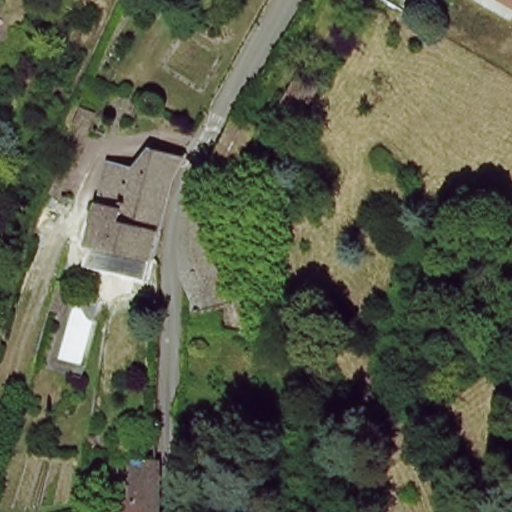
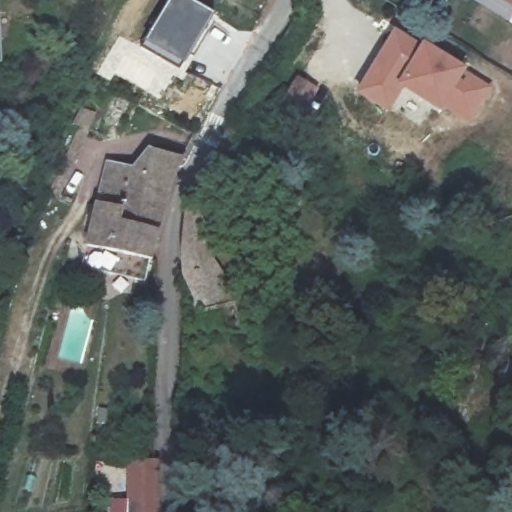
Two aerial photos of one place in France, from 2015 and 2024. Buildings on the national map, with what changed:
new [(168,0),(191,0),(215,14),(181,71),(141,46),(168,0)]
unchanged [(512,9),(496,0),(512,0),(512,9)]
new [(393,27),(440,52),(465,68),(441,109),(439,112),(403,91),(387,113),(353,92),(393,27)]
new [(465,68),(492,87),(470,124),(441,109),(465,68)]
unchanged [(321,89),(301,130),(276,117),(297,78),(321,89)]
unchanged [(261,128),(237,169),(219,161),(241,115),(261,128)]
unchanged [(174,178),(152,260),(85,243),(105,160),(140,169),(151,146),(185,156),(174,178)]
unchanged [(196,301),(185,274),(190,200),(200,200),(206,201),(202,223),(213,266),(235,301),(195,313),(196,301)]
unchanged [(157,512),(129,512),(131,459),(156,460),(158,473),(157,512)]

